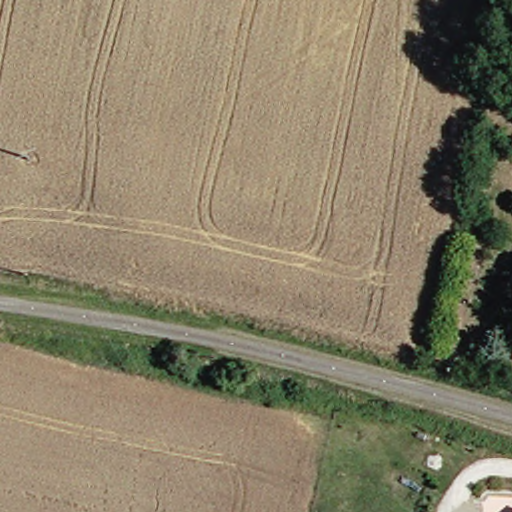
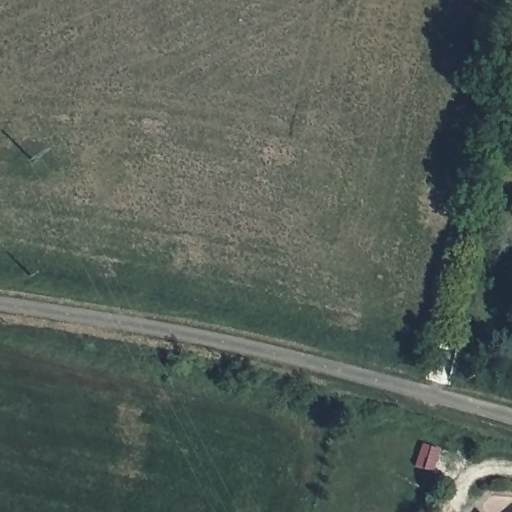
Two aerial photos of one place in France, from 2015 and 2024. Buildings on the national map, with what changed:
unchanged [(512,511),(512,512),(509,512),(511,510),(512,511)]

